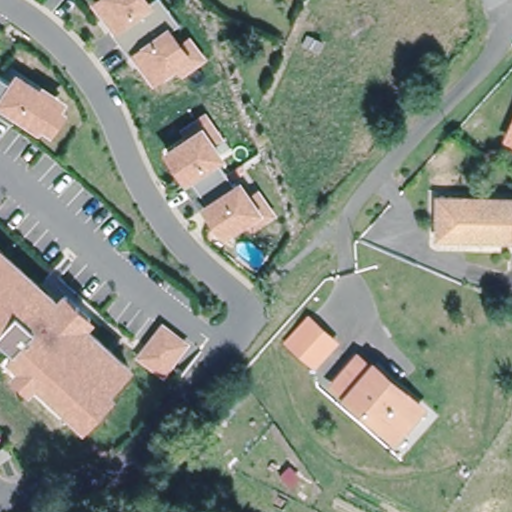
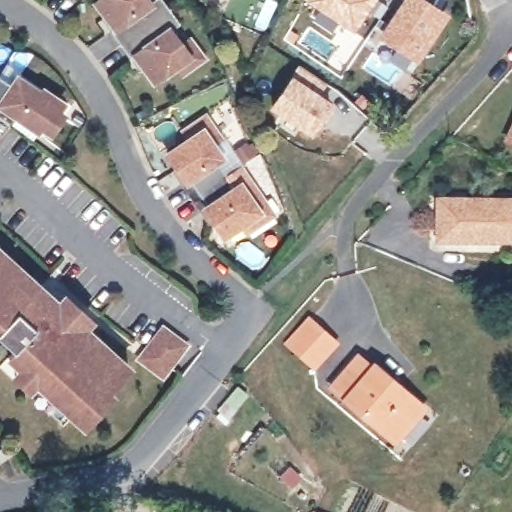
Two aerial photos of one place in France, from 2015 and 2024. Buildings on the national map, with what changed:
unchanged [(204,57),(182,73),(176,64),(155,80),(136,55),(131,59),(110,30),(115,27),(97,2),(100,0),(148,0),(149,2),(152,0),(164,0),(180,22),(170,30),(180,43),(189,36),(204,57)]
new [(352,27),(311,0),(370,0),(352,27)]
new [(406,0),(419,0),(444,16),(417,57),(383,34),(406,0)]
new [(301,64),(324,80),(315,94),(330,103),(311,131),(273,106),(301,64)]
unchanged [(56,138),(46,131),(45,134),(43,135),(17,117),(7,110),(1,118),(0,117),(0,79),(18,91),(23,84),(34,91),(61,109),(58,114),(68,120),(56,138)]
unchanged [(512,146),(503,142),(512,119),(512,146)]
unchanged [(269,221),(247,235),(240,225),(219,240),(201,213),(204,211),(184,183),(181,185),(163,159),(184,144),(178,135),(200,120),(215,142),(207,147),(216,161),(212,164),(231,192),(236,189),(246,204),(254,199),(269,221)]
unchanged [(437,198),(512,198),(512,241),(437,240),(437,198)]
unchanged [(113,393),(116,395),(88,425),(79,416),(41,382),(35,390),(21,377),(27,369),(13,357),(19,351),(2,336),(0,338),(0,247),(6,253),(64,305),(71,297),(96,320),(89,328),(127,363),(135,370),(113,393)]
unchanged [(301,360),(288,349),(310,324),(323,335),(301,360)]
unchanged [(186,345),(164,375),(142,358),(164,329),(186,345)]
unchanged [(395,439),(332,386),(357,357),(372,369),(374,367),(421,407),(395,439)]
unchanged [(6,444),(12,453),(0,462),(0,449),(6,444)]

